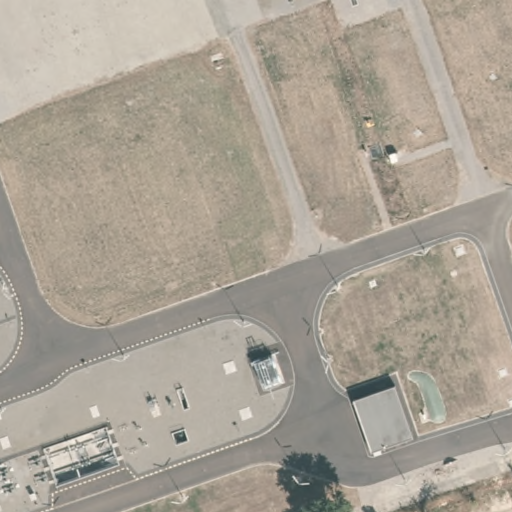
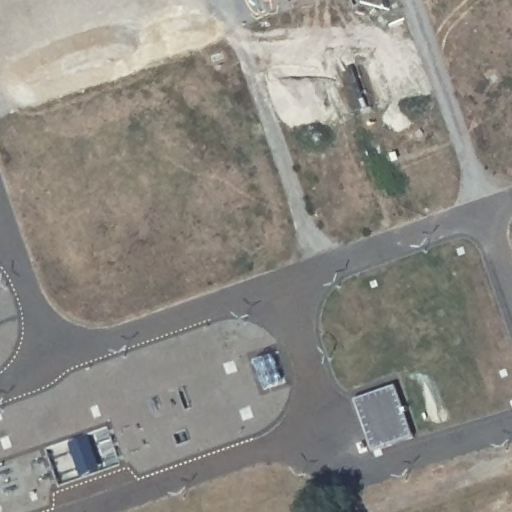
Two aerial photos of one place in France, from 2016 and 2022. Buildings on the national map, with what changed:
unchanged [(395,386),(412,439),(370,454),(352,401),(395,386)]

